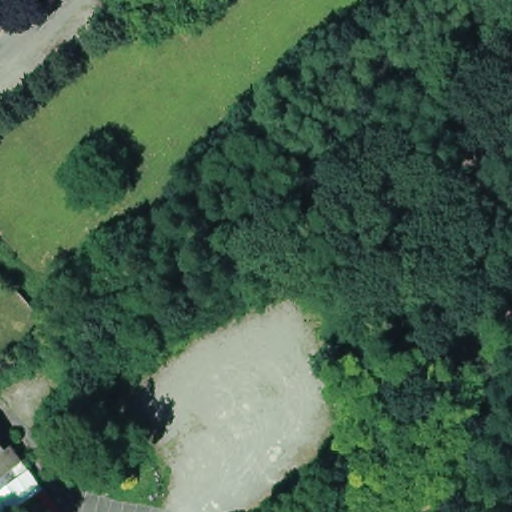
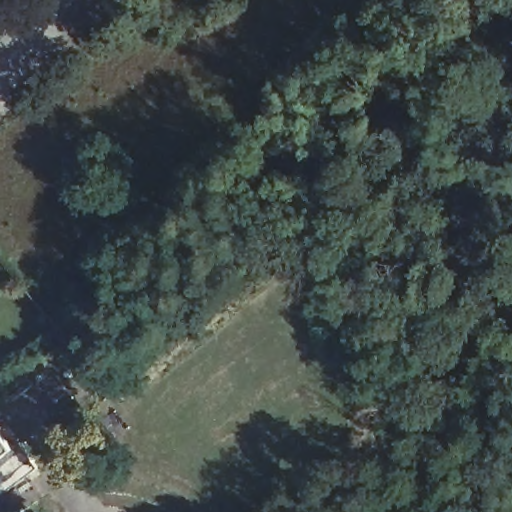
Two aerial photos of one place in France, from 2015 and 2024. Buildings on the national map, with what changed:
unchanged [(22,438),(35,455),(2,480),(0,482),(0,423),(15,443),(22,438)]

